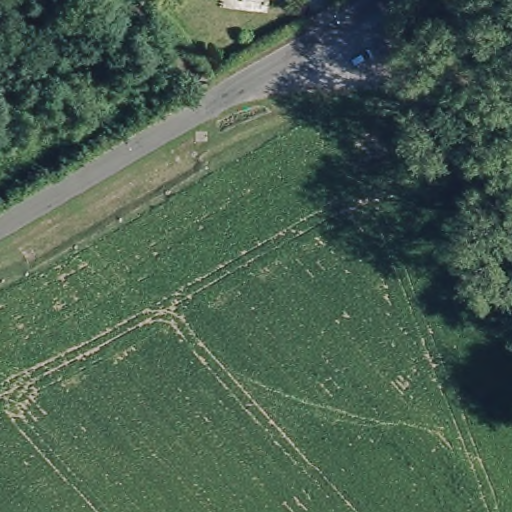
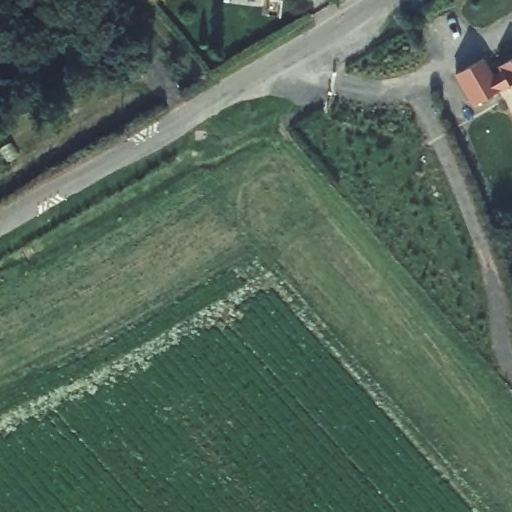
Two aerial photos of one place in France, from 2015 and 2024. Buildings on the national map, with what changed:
new [(484,60),(492,76),(512,65),(512,87),(510,84),(476,103),(456,77),(484,60)]

